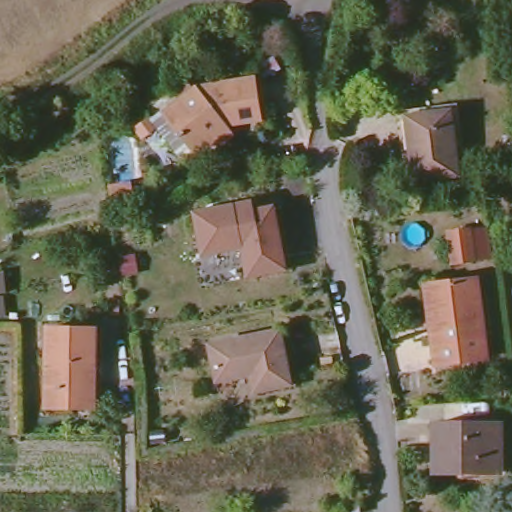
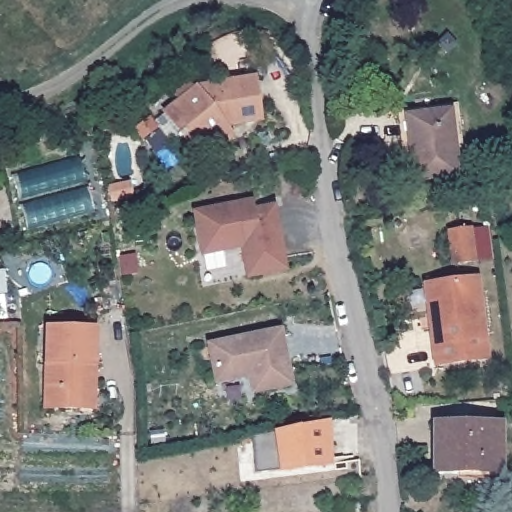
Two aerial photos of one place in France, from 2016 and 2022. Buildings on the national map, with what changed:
unchanged [(227,129),(235,139),(223,149),(216,140),(196,156),(163,116),(194,90),(206,101),(223,87),(258,82),(261,125),(227,129)]
unchanged [(413,177),(409,149),(413,148),(409,118),(450,113),(457,173),(413,177)]
unchanged [(108,183),(134,176),(136,196),(109,199),(108,183)]
unchanged [(254,205),(256,214),(277,210),(288,274),(259,278),(259,271),(248,273),(243,240),(228,242),(225,248),(226,253),(204,257),(198,219),(202,213),(254,205)]
unchanged [(458,261),(453,227),(474,225),(479,258),(458,261)]
unchanged [(484,361),(433,365),(431,329),(426,285),(437,284),(477,283),(484,361)]
unchanged [(83,359),(81,403),(48,402),(49,328),(95,329),(95,360),(83,359)]
unchanged [(255,394),(250,374),(216,380),(210,347),(281,331),(293,387),(255,394)]
new [(279,475),(279,470),(255,474),(251,438),(273,433),(329,423),(332,470),(279,475)]
unchanged [(438,477),(438,426),(500,425),(499,478),(438,477)]

